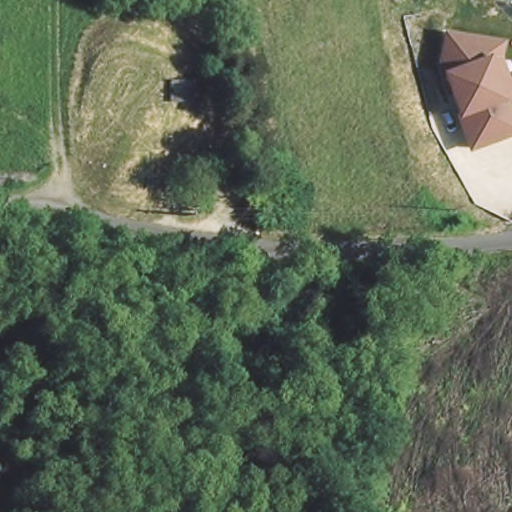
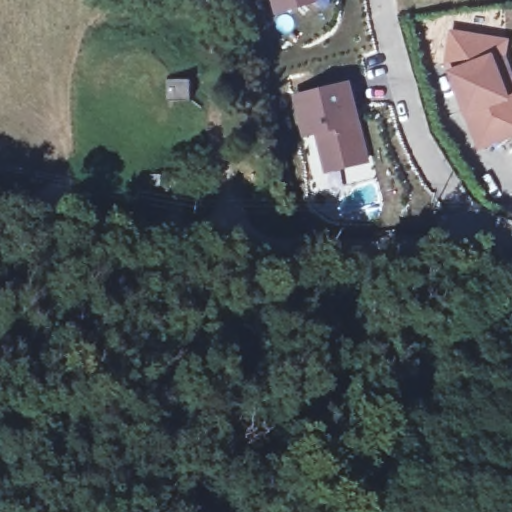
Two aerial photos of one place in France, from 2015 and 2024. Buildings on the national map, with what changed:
new [(302,5),(271,12),(268,0),(305,0),(302,5)]
unchanged [(507,59),(512,72),(512,139),(478,154),(448,72),(442,70),(450,29),(511,37),(507,59)]
new [(344,165),(324,169),(316,130),(303,134),(294,94),(341,85),(348,84),(356,120),(359,141),(364,161),(344,165)]

